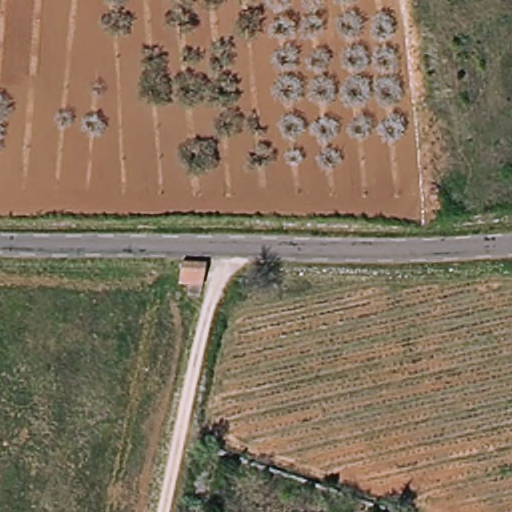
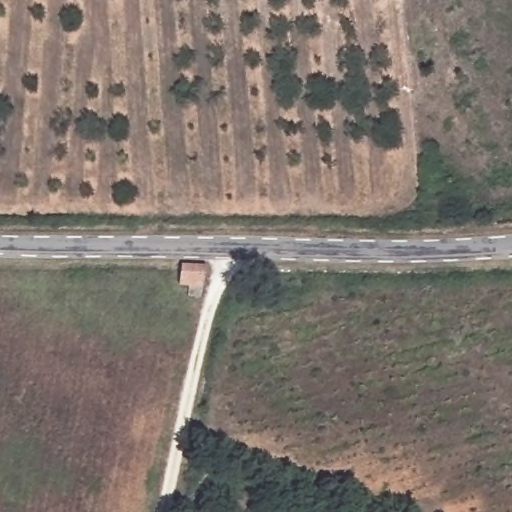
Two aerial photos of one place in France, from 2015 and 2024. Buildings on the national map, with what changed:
unchanged [(187,294),(186,285),(178,284),(180,265),(201,267),(196,296),(187,294)]

